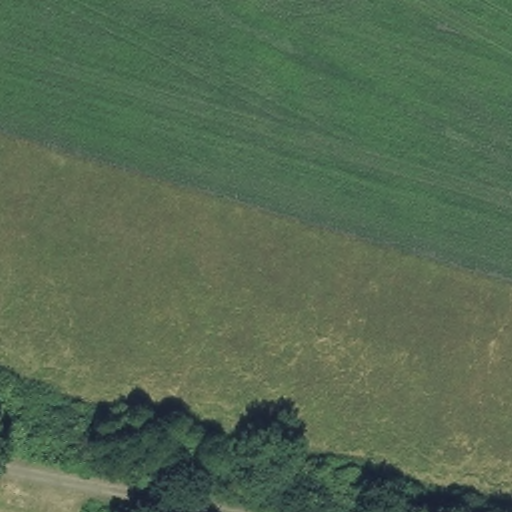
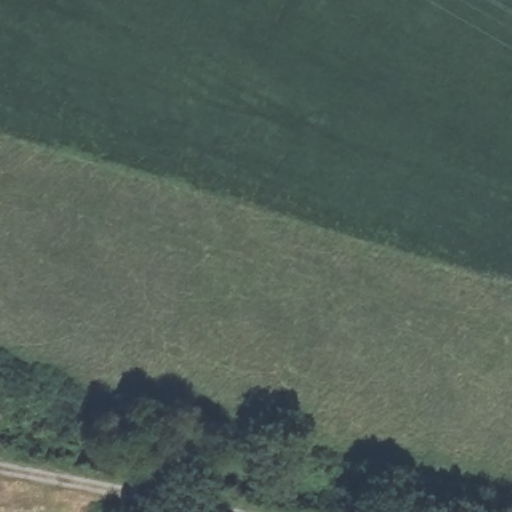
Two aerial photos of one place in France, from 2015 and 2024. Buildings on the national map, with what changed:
[]

